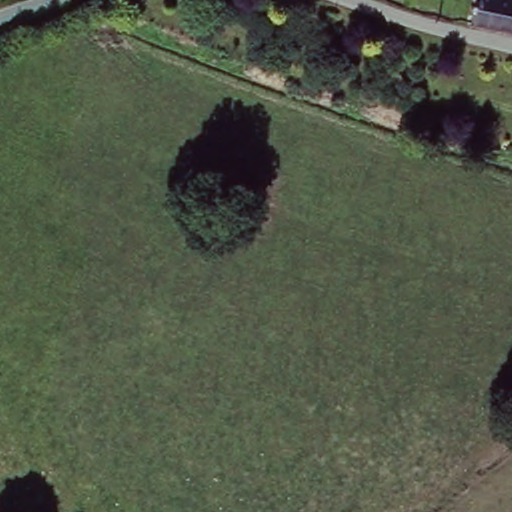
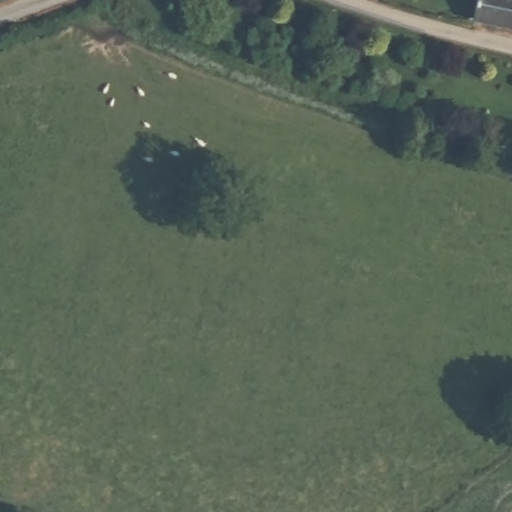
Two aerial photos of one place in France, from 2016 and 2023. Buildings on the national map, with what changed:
unchanged [(512,0),(512,26),(470,16),(474,0),(512,0)]

